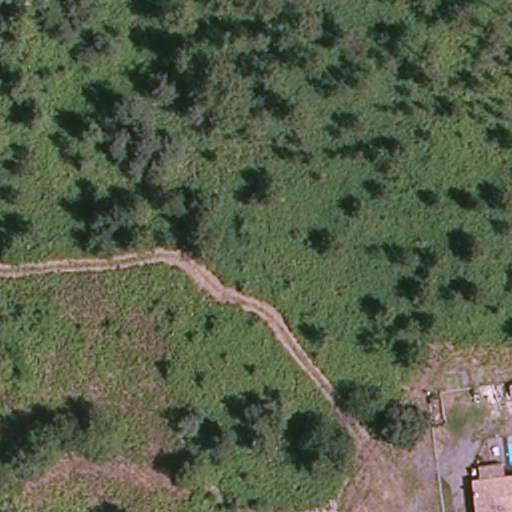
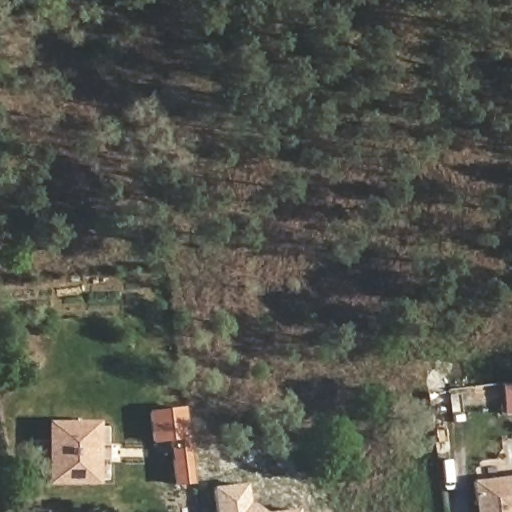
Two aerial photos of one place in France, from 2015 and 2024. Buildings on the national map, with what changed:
new [(512,413),(506,414),(503,383),(512,382),(512,413)]
new [(172,486),(167,442),(152,443),(147,411),(182,407),(194,483),(172,486)]
new [(50,477),(50,422),(94,422),(95,477),(50,477)]
unchanged [(471,481),(512,476),(512,512),(475,512),(471,481)]
new [(213,488),(247,482),(249,501),(264,512),(216,512),(213,488)]
new [(299,512),(274,512),(299,509),(299,512)]

